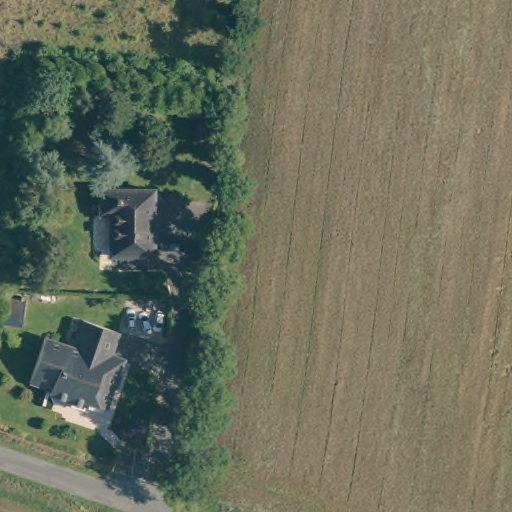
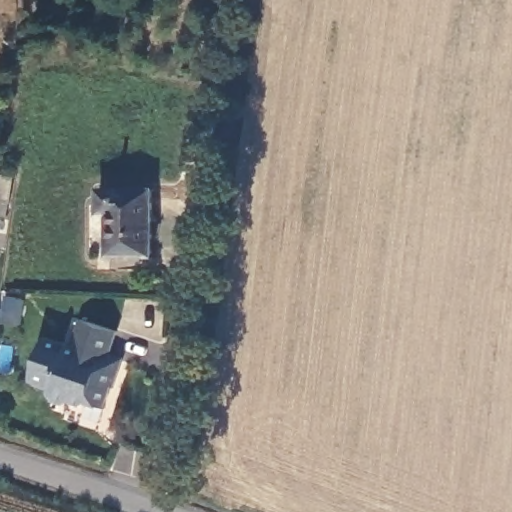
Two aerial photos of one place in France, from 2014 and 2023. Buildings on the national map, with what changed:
unchanged [(158,220),(158,252),(115,253),(113,218),(113,210),(104,211),(103,187),(158,187),(158,220)]
unchanged [(75,344),(84,317),(120,328),(111,353),(121,356),(116,371),(119,372),(109,405),(92,399),(85,402),(74,399),(68,402),(55,398),(51,392),(53,387),(31,380),(46,335),(75,344)]

